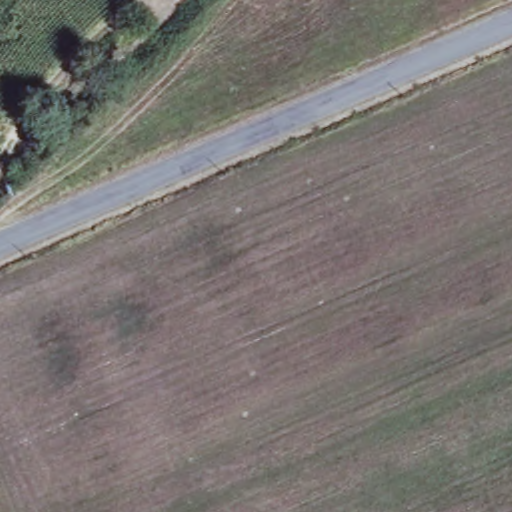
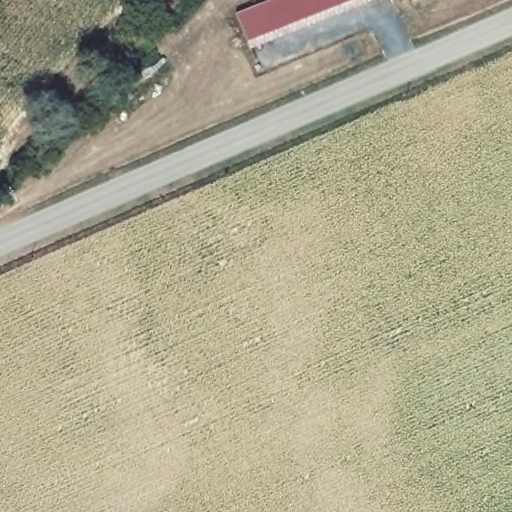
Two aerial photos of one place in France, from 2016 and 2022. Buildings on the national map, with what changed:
new [(251,48),(236,14),(271,0),(368,0),(251,48)]

